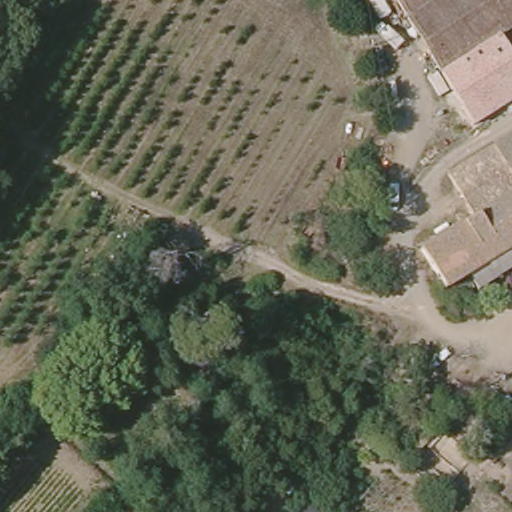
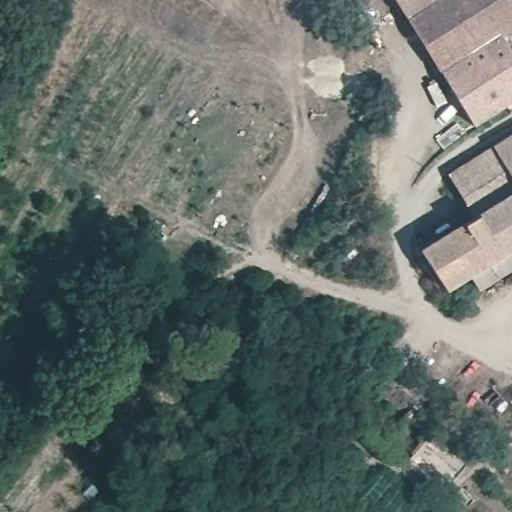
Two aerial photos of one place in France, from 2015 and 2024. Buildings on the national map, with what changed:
unchanged [(460,19),(425,49),(394,0),(490,0),(460,19)]
unchanged [(512,27),(500,34),(440,71),(425,49),(460,19),(490,0),(512,0),(512,27)]
unchanged [(500,34),(512,53),(512,97),(505,102),(473,122),(453,93),(440,71),(500,34)]
unchanged [(512,135),(512,183),(490,149),(512,135)]
unchanged [(512,194),(469,220),(443,176),(490,149),(512,183),(512,194)]
unchanged [(441,237),(469,220),(512,194),(512,251),(507,254),(443,294),(419,252),(441,237)]
unchanged [(352,400),(370,417),(358,427),(341,413),(352,400)]
unchanged [(387,442),(410,462),(405,468),(380,448),(387,442)]

